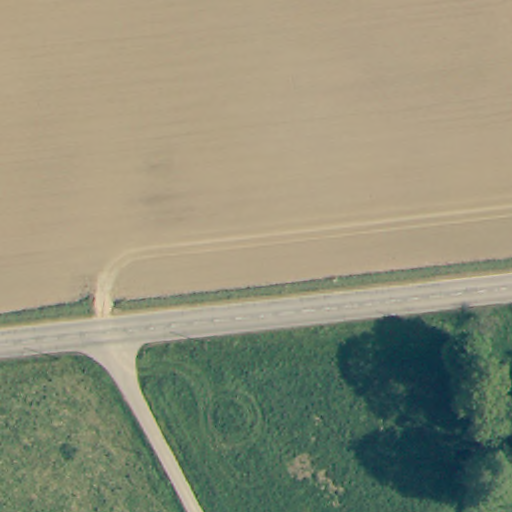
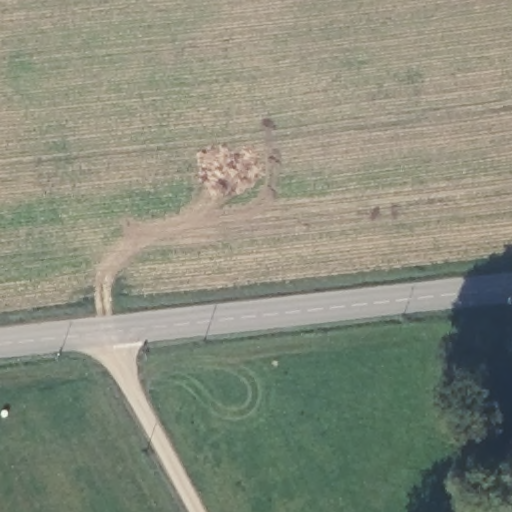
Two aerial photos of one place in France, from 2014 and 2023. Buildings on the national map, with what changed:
[]

